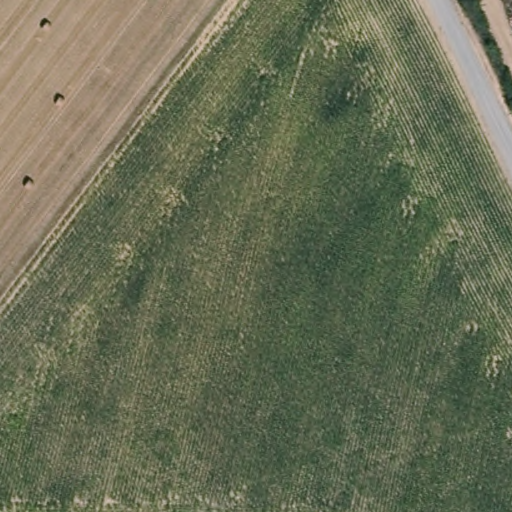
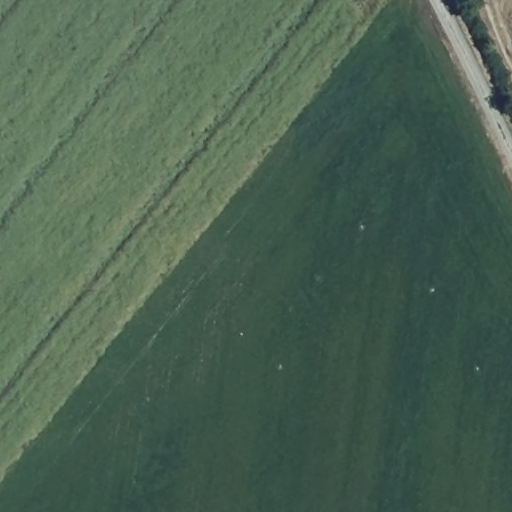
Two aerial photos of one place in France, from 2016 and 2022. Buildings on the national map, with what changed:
[]

